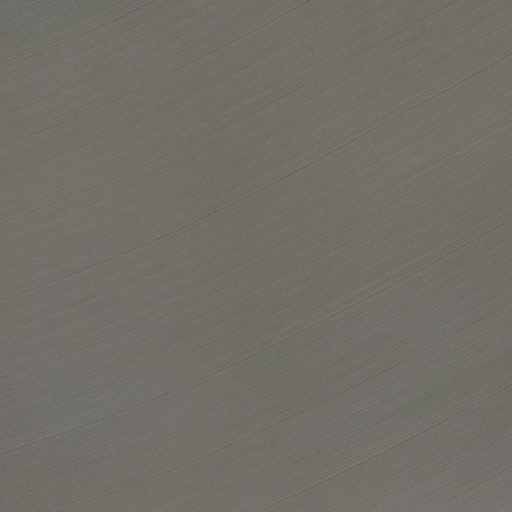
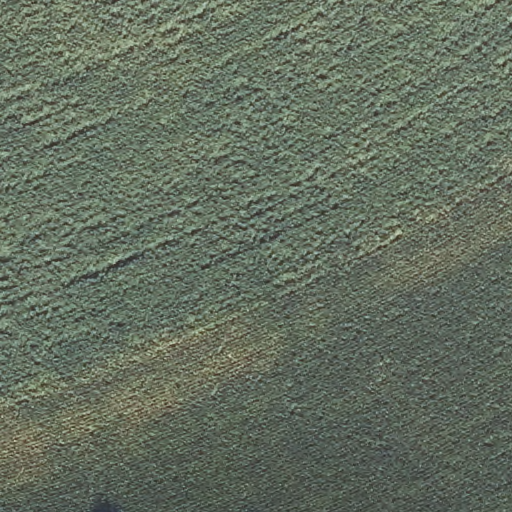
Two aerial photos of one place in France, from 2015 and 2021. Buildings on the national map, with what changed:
[]

